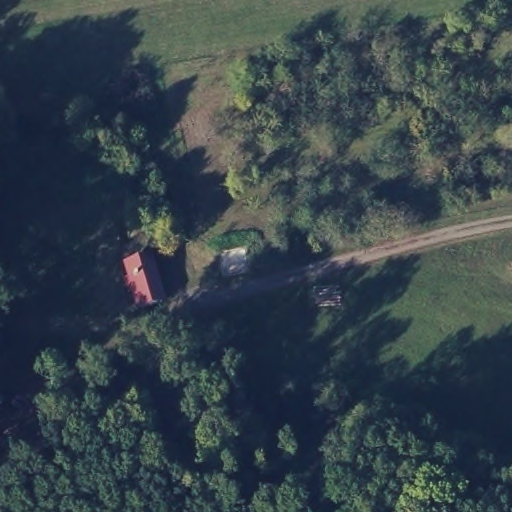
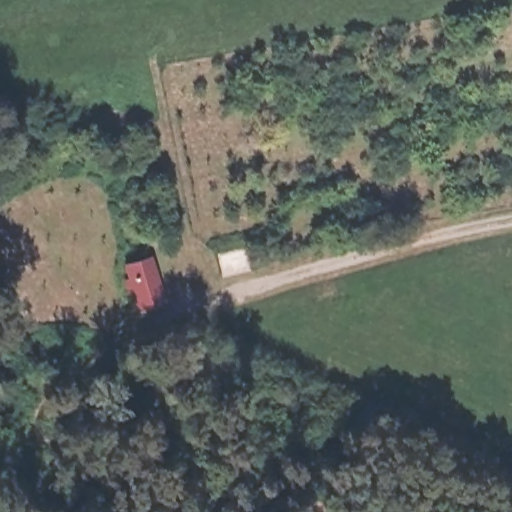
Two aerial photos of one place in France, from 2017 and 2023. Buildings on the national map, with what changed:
unchanged [(143,252),(157,297),(136,303),(122,258),(143,252)]

